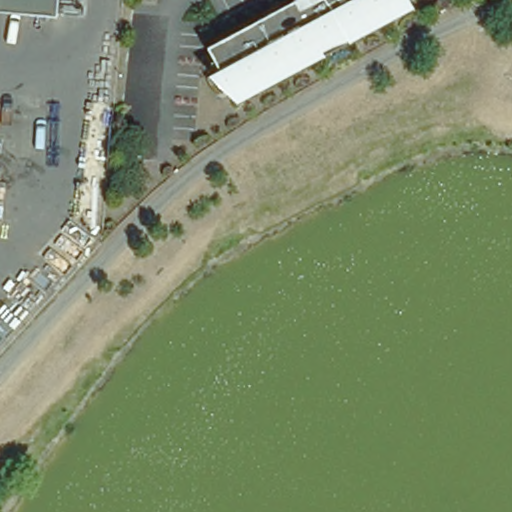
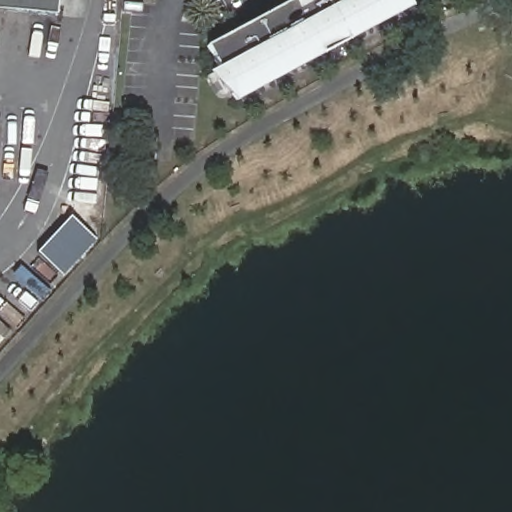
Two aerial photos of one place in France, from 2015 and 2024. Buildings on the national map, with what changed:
unchanged [(56,19),(0,14),(0,0),(58,0),(56,19)]
unchanged [(412,6),(236,103),(206,75),(217,69),(213,62),(205,47),(288,1),(288,0),(408,0),(412,6)]
new [(71,217),(96,241),(63,277),(37,254),(71,217)]

